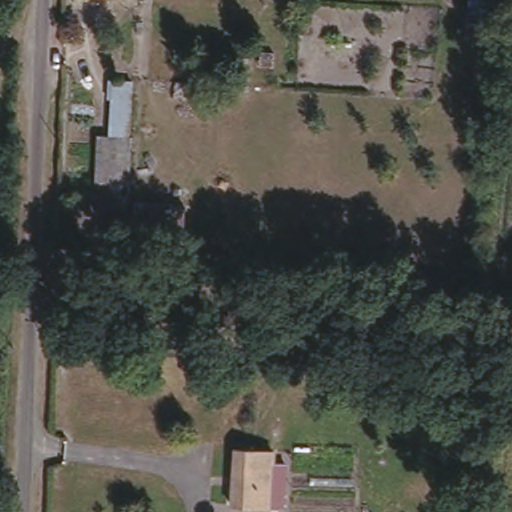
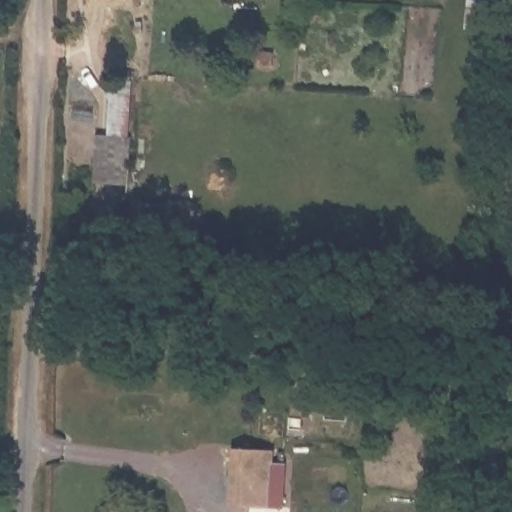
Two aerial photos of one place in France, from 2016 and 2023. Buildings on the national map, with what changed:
unchanged [(462,39),(466,0),(469,0),(484,2),(480,42),(462,39)]
unchanged [(93,185),(102,72),(121,75),(115,186),(93,185)]
unchanged [(127,203),(178,210),(173,237),(123,229),(127,203)]
unchanged [(223,501),(231,443),(267,448),(265,459),(287,463),(284,491),(282,510),(223,501)]

